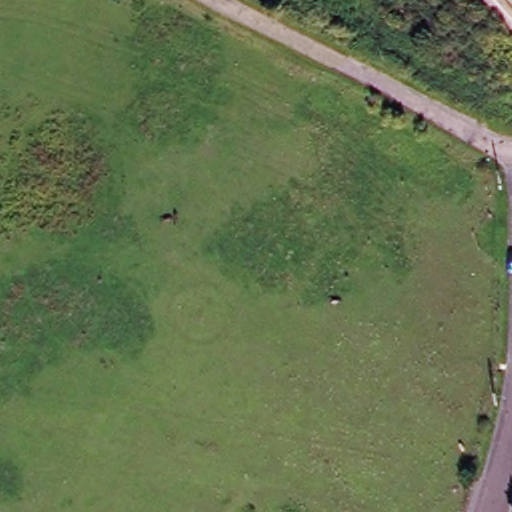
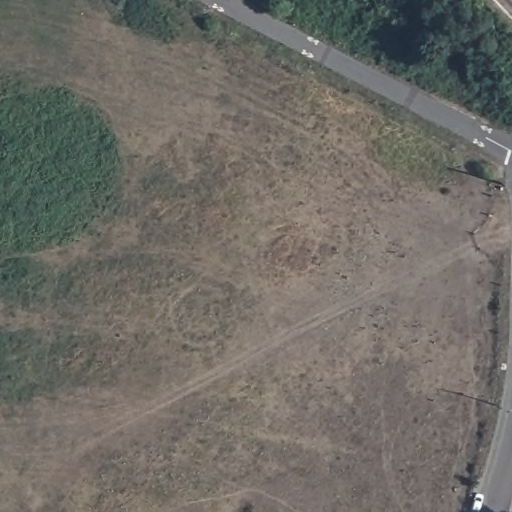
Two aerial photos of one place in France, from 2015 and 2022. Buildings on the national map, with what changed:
[]

